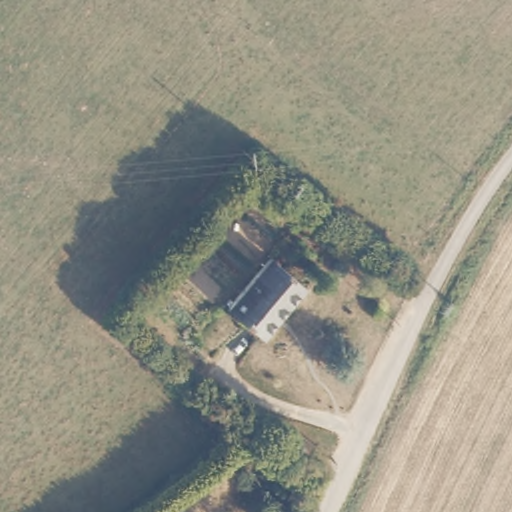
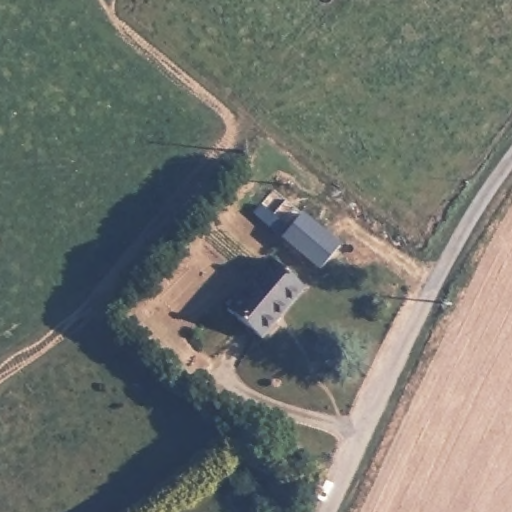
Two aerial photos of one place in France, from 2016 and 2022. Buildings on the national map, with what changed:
new [(341,245),(320,269),(283,236),(304,212),(341,245)]
unchanged [(307,280),(271,338),(231,311),(268,254),(307,280)]

